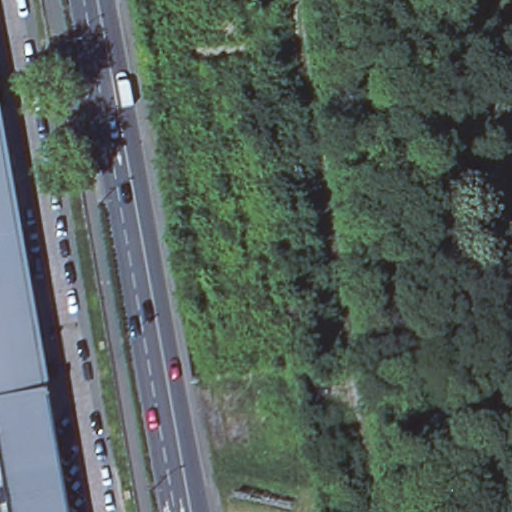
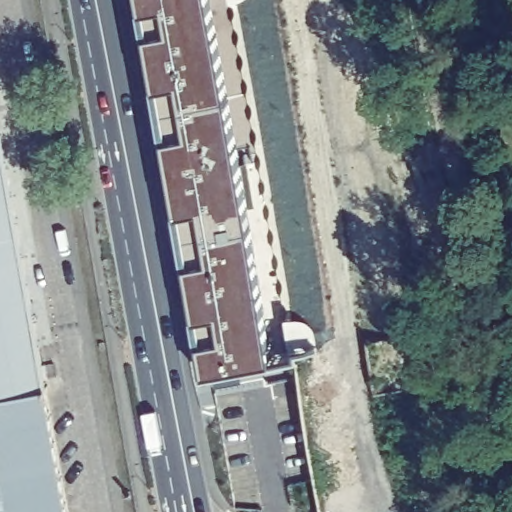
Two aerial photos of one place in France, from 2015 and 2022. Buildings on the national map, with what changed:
new [(295,362),(195,381),(191,349),(216,343),(210,312),(187,315),(176,268),(200,264),(195,207),(168,209),(159,141),(176,141),(170,80),(146,82),(138,39),(162,33),(157,5),(131,6),(130,0),(236,0),(295,362)]
unchanged [(6,118),(1,119),(50,388),(55,388),(56,396),(52,397),(73,512),(0,512),(0,110),(5,110),(6,118)]

